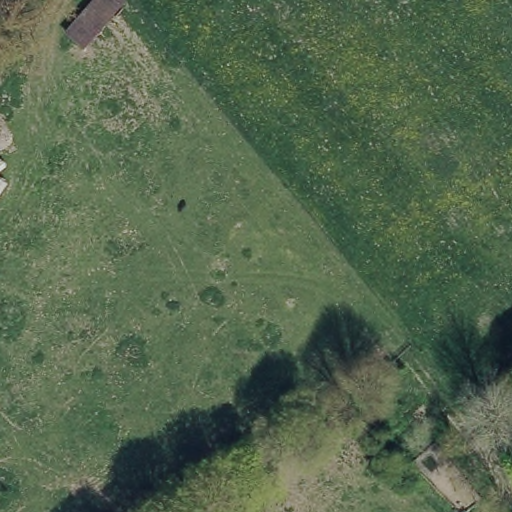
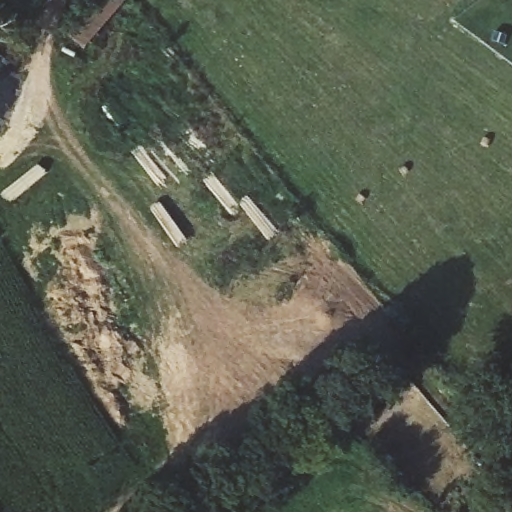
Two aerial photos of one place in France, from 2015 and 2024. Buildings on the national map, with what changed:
unchanged [(62,27),(84,0),(118,0),(80,42),(62,27)]

